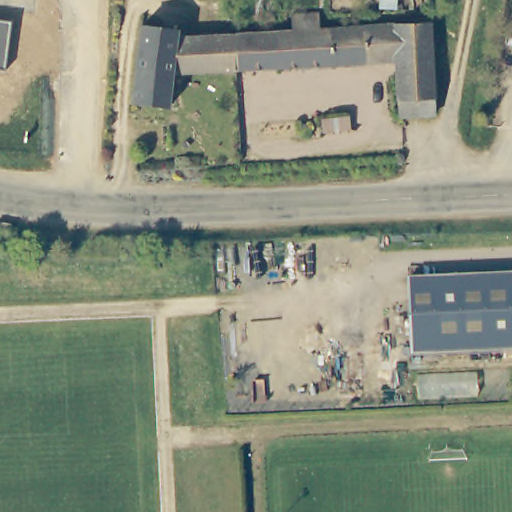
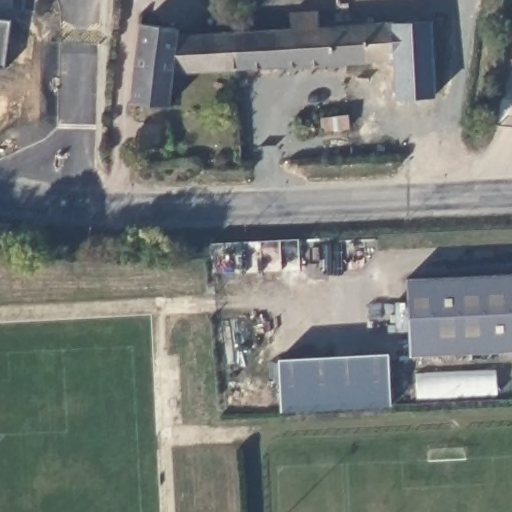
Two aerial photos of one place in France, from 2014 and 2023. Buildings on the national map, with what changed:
unchanged [(234,32),(289,30),(288,12),(318,11),(318,27),(427,24),(430,112),(397,113),(395,64),(236,69),(234,32)]
unchanged [(4,70),(0,70),(0,20),(10,21),(4,70)]
unchanged [(167,107),(131,105),(136,25),(170,26),(169,34),(168,71),(167,107)]
unchanged [(200,33),(234,32),(236,69),(200,70),(200,33)]
unchanged [(200,33),(200,70),(168,71),(169,34),(200,33)]
unchanged [(10,238),(0,237),(0,226),(12,227),(10,238)]
unchanged [(404,359),(400,280),(512,275),(512,354),(404,359)]
new [(388,354),(391,407),(281,412),(278,360),(388,354)]

